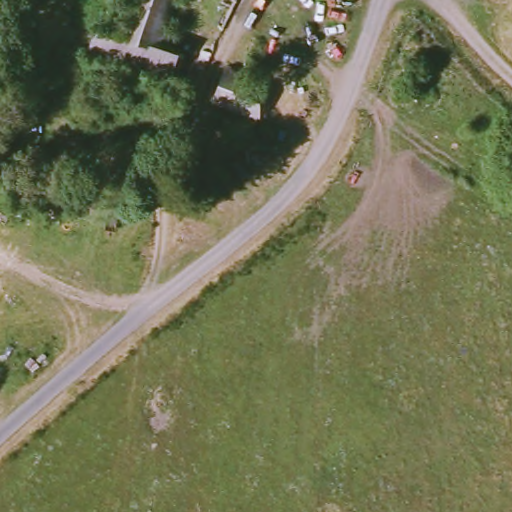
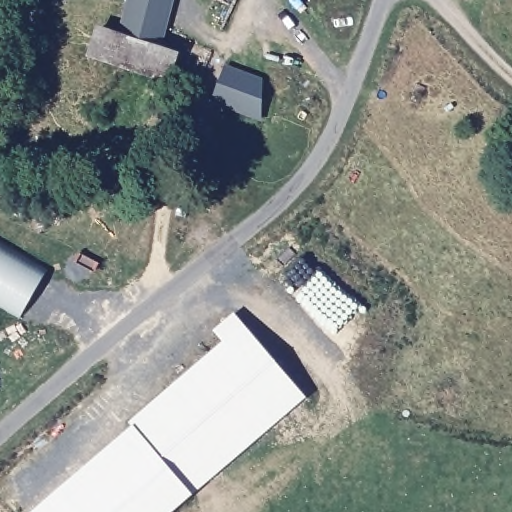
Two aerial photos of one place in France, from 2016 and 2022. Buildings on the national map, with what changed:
unchanged [(92,55),(103,26),(124,33),(133,0),(177,0),(165,47),(184,53),(174,82),(92,55)]
unchanged [(218,101),(231,67),(267,82),(266,118),(218,101)]
new [(22,320),(0,308),(0,243),(48,273),(22,320)]
new [(193,494),(172,512),(31,512),(132,426),(129,421),(223,341),(213,330),(234,312),(307,397),(193,494)]

